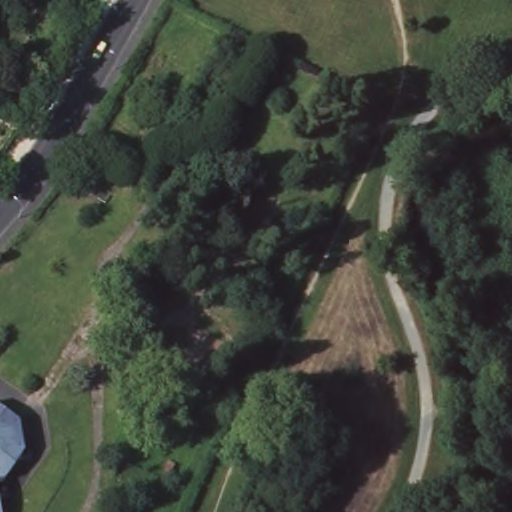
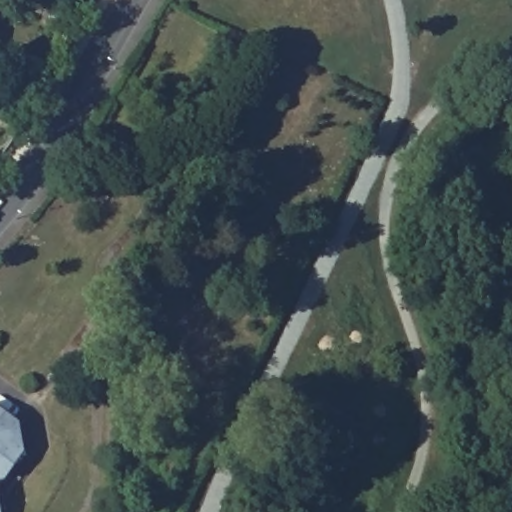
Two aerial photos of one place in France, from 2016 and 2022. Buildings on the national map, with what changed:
unchanged [(25,453),(6,481),(0,481),(0,411),(21,425),(25,453)]
unchanged [(6,512),(0,512),(0,481),(6,481),(6,512)]

